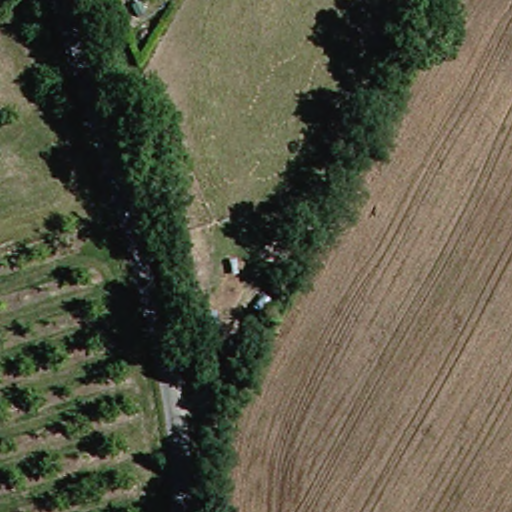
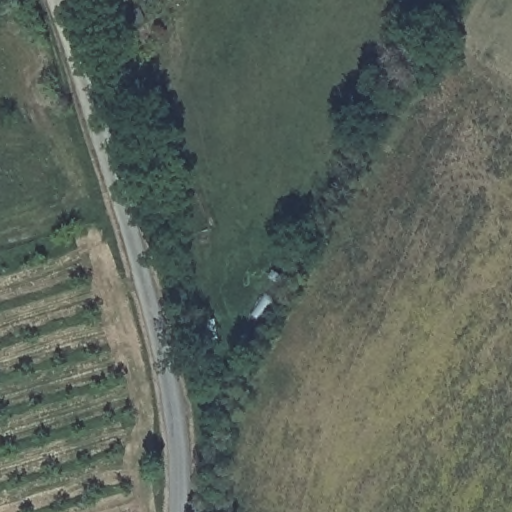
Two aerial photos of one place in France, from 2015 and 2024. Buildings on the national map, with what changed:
[]

